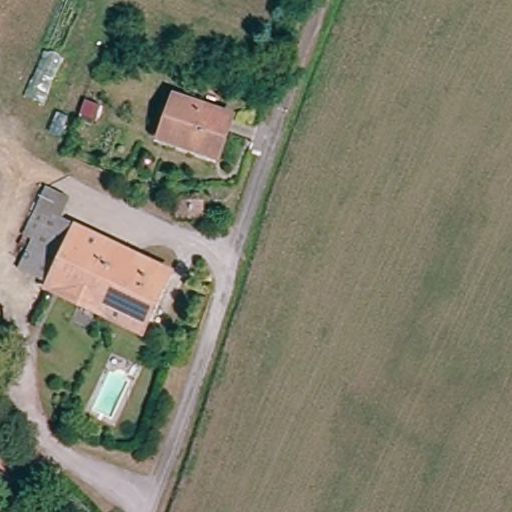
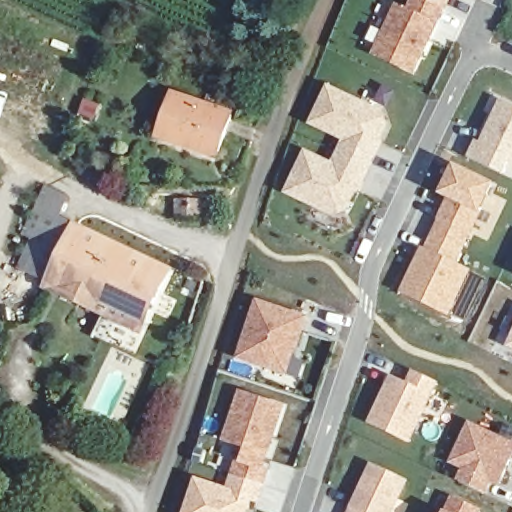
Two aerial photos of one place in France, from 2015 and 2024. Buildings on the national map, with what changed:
new [(374,54),(396,4),(405,8),(409,0),(452,0),(418,74),(374,54)]
new [(306,148),(332,161),(343,141),(308,125),(328,85),(384,112),(388,129),(383,140),(384,144),(361,192),(357,193),(350,212),(337,218),(284,193),(306,148)]
new [(477,140),(482,141),(501,99),(512,104),(512,163),(510,162),(504,174),(467,158),(477,140)]
unchanged [(173,100),(227,120),(212,159),(159,139),(173,100)]
new [(400,292),(423,246),(425,249),(446,198),(439,195),(455,164),(495,184),(481,214),(457,264),(472,271),(450,315),(400,292)]
unchanged [(20,194),(0,230),(0,183),(20,194)]
unchanged [(56,282),(25,266),(49,216),(38,211),(48,190),(66,200),(55,219),(81,231),(56,282)]
unchanged [(56,282),(81,231),(174,275),(148,334),(52,288),(56,282)]
new [(237,359),(256,299),(308,316),(297,350),(296,349),(288,376),(237,359)]
new [(512,351),(506,348),(512,335),(512,351)]
new [(370,422),(392,374),(407,382),(413,371),(439,383),(412,443),(370,422)]
new [(285,406),(264,467),(270,470),(263,488),(234,479),(228,494),(197,482),(198,477),(227,487),(235,460),(239,462),(244,448),(221,441),(239,390),(285,406)]
new [(462,468),(450,464),(469,421),(512,442),(512,463),(501,487),(491,483),(487,493),(457,480),(462,468)]
new [(409,482),(395,512),(348,512),(372,464),(409,482)]
new [(234,479),(263,488),(259,503),(249,500),(246,512),(186,512),(197,482),(228,494),(234,479)]
new [(478,512),(447,512),(452,500),(478,512)]

